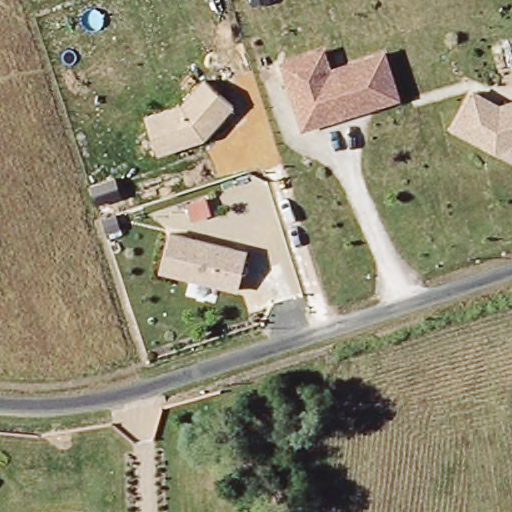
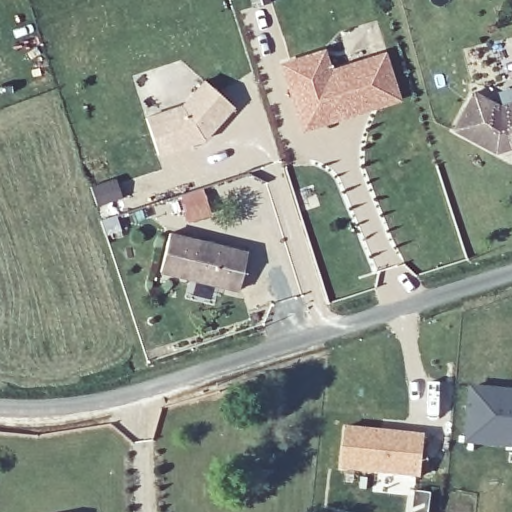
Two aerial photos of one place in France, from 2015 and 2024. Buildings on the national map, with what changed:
unchanged [(325,52),(332,71),(386,54),(401,98),(334,120),(313,55),(325,52)]
unchanged [(290,86),(284,65),(313,55),(334,120),(319,125),(305,129),(290,86)]
unchanged [(151,127),(174,119),(188,114),(211,88),(219,95),(239,112),(229,125),(211,147),(186,156),(164,163),(151,127)]
unchanged [(500,155),(458,133),(477,96),(484,100),(512,91),(512,151),(500,155)]
unchanged [(169,231),(248,250),(238,293),(159,275),(169,231)]
new [(464,445),(469,385),(512,390),(512,449),(464,445)]
new [(420,478),(340,469),(345,426),(425,434),(420,478)]

